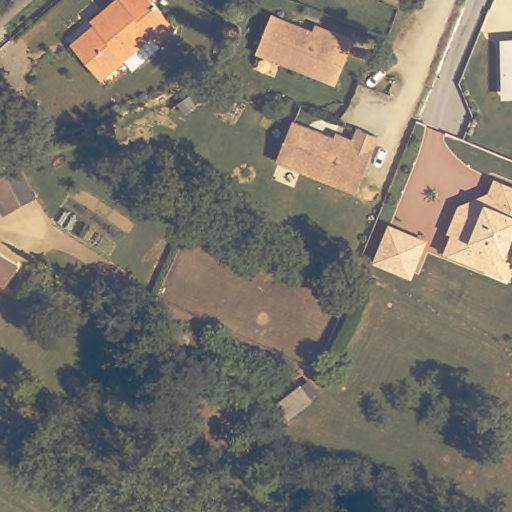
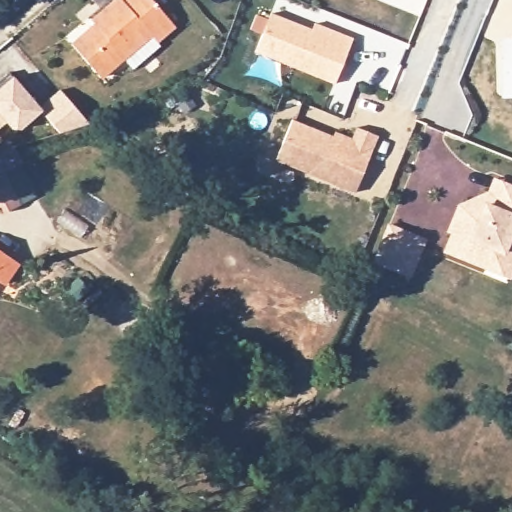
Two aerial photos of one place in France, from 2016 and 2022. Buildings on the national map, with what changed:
unchanged [(122,59),(100,79),(71,46),(95,26),(91,22),(117,0),(151,0),(174,27),(155,42),(160,47),(132,70),(122,59)]
unchanged [(255,52),(271,14),(312,30),(315,24),(353,39),(335,85),(255,52)]
unchanged [(512,100),(500,100),(500,39),(512,38),(512,100)]
new [(7,72),(38,108),(59,91),(88,125),(59,134),(40,112),(19,130),(10,129),(5,122),(0,126),(0,79),(7,72)]
unchanged [(275,161),(291,121),(333,137),(335,132),(351,140),(356,128),(378,137),(355,193),(275,161)]
unchanged [(20,206),(4,214),(0,207),(0,151),(13,147),(22,167),(19,168),(34,199),(20,206)]
unchanged [(453,233),(465,206),(465,207),(495,193),(500,179),(512,184),(512,279),(509,277),(450,253),(457,235),(453,233)]
unchanged [(410,276),(375,262),(389,227),(423,241),(410,276)]
unchanged [(22,263),(7,286),(0,280),(0,249),(22,263)]
unchanged [(141,314),(150,328),(125,344),(116,331),(141,314)]
unchanged [(288,418),(275,402),(300,384),(300,386),(308,380),(317,392),(310,397),(311,400),(288,418)]

